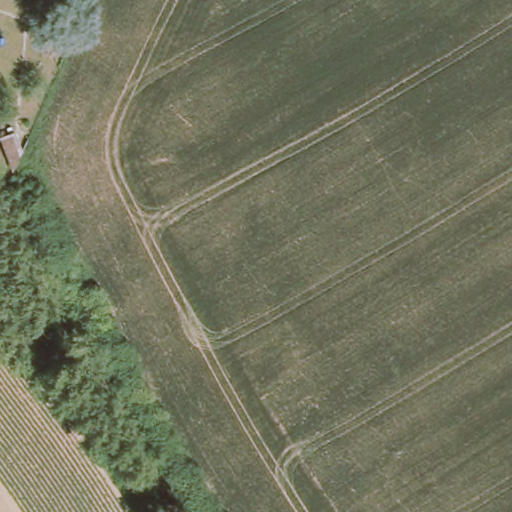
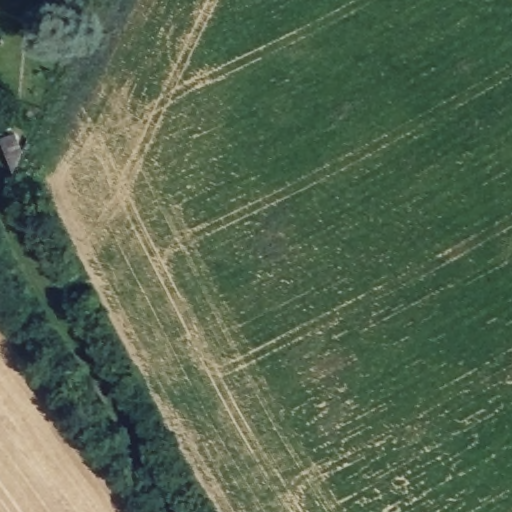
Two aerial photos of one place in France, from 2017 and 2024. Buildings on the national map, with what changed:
unchanged [(0,138),(0,132),(23,124),(30,137),(14,175),(0,138)]

